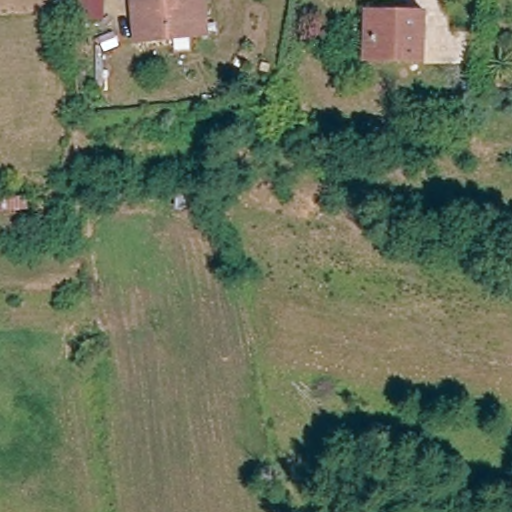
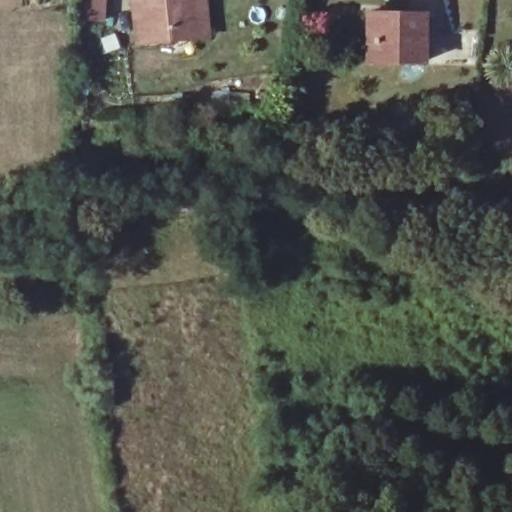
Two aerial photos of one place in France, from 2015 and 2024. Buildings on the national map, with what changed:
unchanged [(106,0),(105,27),(83,25),(83,0),(106,0)]
unchanged [(142,0),(206,0),(208,39),(139,45),(136,1),(142,0)]
unchanged [(368,26),(370,7),(430,10),(427,60),(415,59),(366,56),(368,26)]

